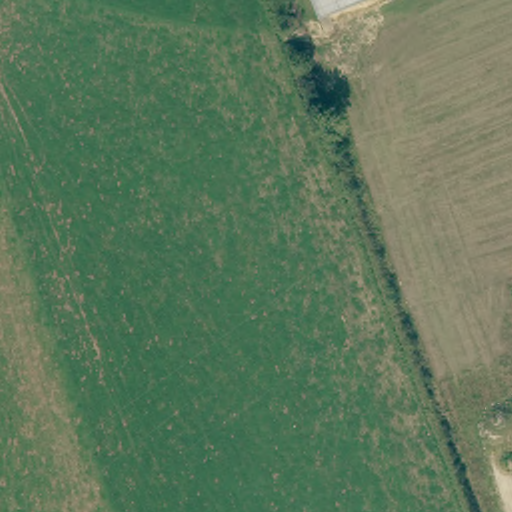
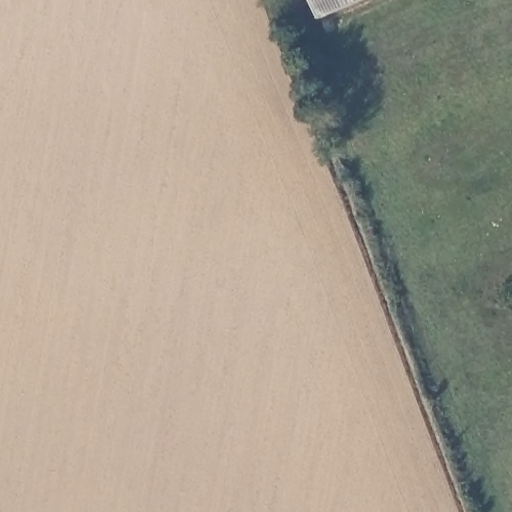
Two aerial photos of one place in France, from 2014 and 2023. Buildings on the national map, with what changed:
unchanged [(312,0),(366,0),(320,19),(312,0)]

